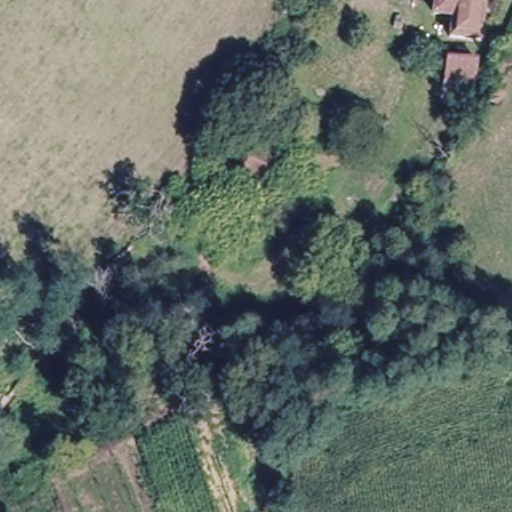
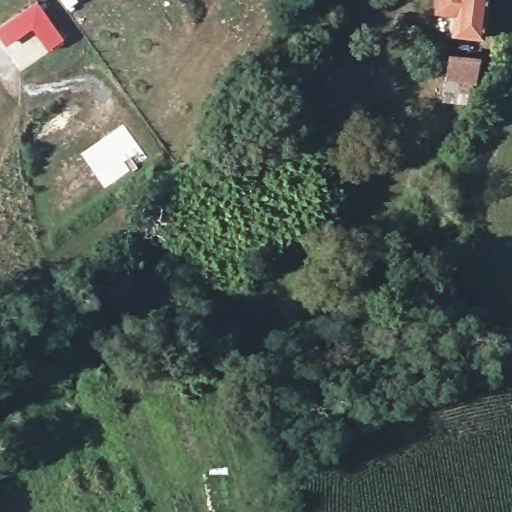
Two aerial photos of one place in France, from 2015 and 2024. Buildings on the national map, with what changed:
unchanged [(452,12),(432,9),(434,0),(487,0),(482,36),(448,32),(452,12)]
new [(35,26),(29,24),(3,42),(0,37),(0,26),(35,1),(47,17),(61,38),(49,47),(35,26)]
unchanged [(477,52),(474,76),(470,75),(466,97),(442,94),(444,81),(443,81),(447,49),(477,52)]

